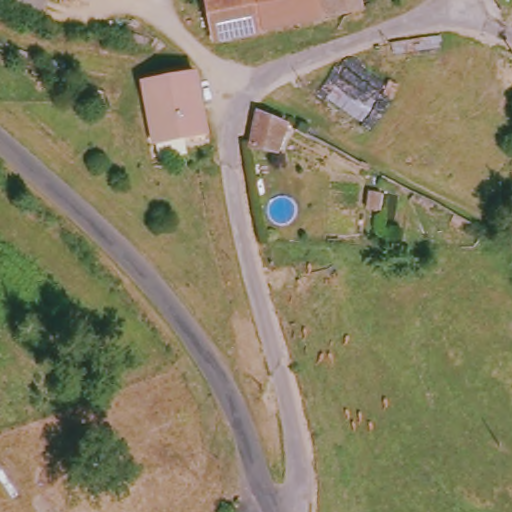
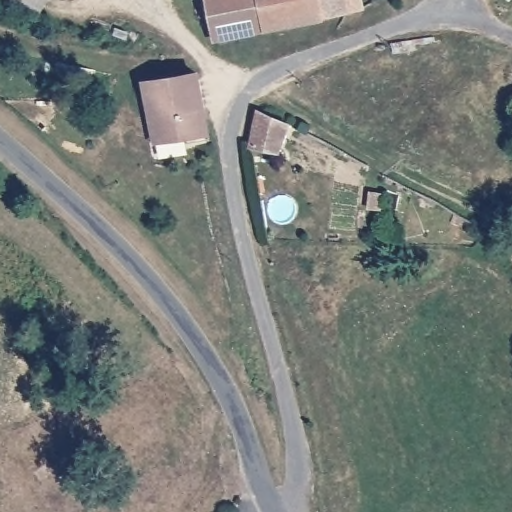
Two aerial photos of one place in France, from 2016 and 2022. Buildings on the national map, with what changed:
unchanged [(35,16),(11,0),(46,0),(35,16)]
unchanged [(75,2),(72,0),(76,0),(75,2)]
unchanged [(210,37),(204,0),(243,0),(246,30),(210,37)]
unchanged [(246,30),(243,0),(322,0),(325,19),(246,30)]
unchanged [(322,0),(360,0),(360,3),(325,19),(322,0)]
unchanged [(148,147),(143,78),(196,75),(203,141),(148,147)]
unchanged [(282,149),(253,146),(256,112),(284,114),(282,149)]

